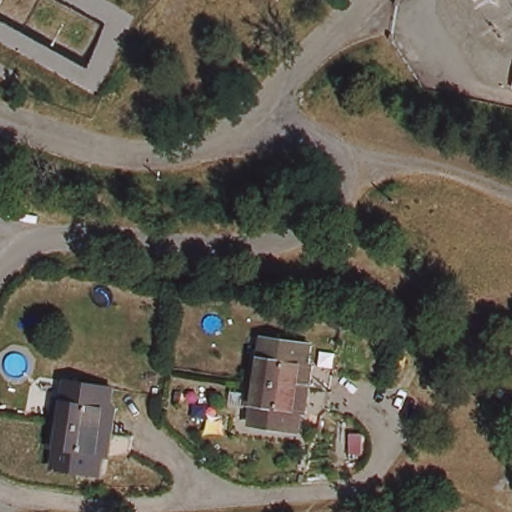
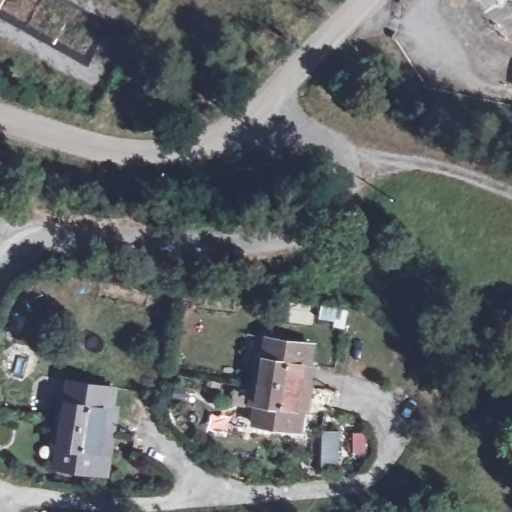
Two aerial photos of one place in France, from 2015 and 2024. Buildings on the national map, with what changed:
unchanged [(251,357),(266,360),(271,333),(315,342),(307,382),(248,370),(251,357)]
unchanged [(307,382),(298,430),(254,422),(259,391),(244,387),(248,370),(307,382)]
unchanged [(53,411),(63,413),(71,381),(116,391),(106,432),(51,420),(53,411)]
unchanged [(106,432),(94,477),(50,466),(58,433),(48,431),(51,420),(106,432)]

